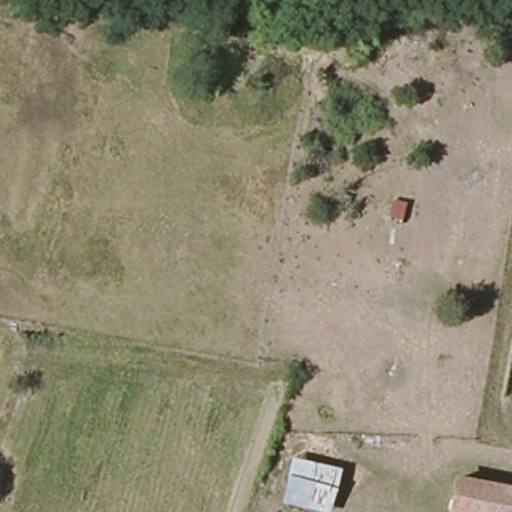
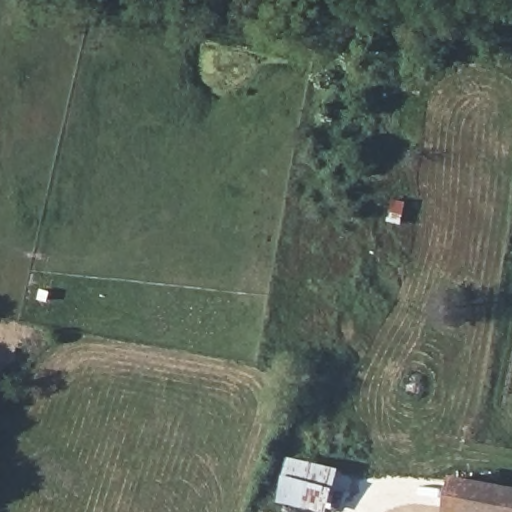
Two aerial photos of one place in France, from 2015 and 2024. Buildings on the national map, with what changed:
unchanged [(342,466),(330,509),(286,496),(298,455),(342,466)]
unchanged [(512,490),(512,512),(450,512),(455,478),(472,482),(512,490)]

